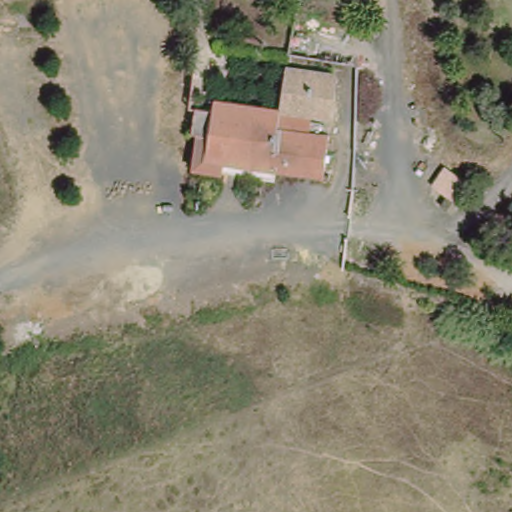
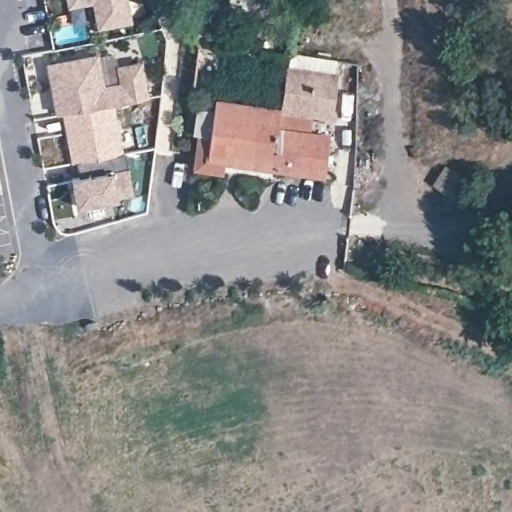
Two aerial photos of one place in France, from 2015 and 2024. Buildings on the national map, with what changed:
new [(128,21),(98,26),(93,1),(68,5),(67,0),(124,0),(128,21)]
new [(48,66),(95,57),(101,89),(121,85),(118,69),(139,65),(146,99),(63,115),(57,116),(54,98),(53,91),(48,66)]
unchanged [(288,64),(343,71),(336,117),(321,114),(318,127),(278,121),(281,104),(288,64)]
unchanged [(281,104),(278,121),(318,127),(330,129),(321,173),(202,154),(213,96),(281,104)]
new [(113,105),(122,155),(75,163),(71,164),(63,115),(113,105)]
new [(78,178),(75,163),(122,155),(124,154),(132,195),(116,199),(116,200),(75,208),(69,180),(78,178)]

